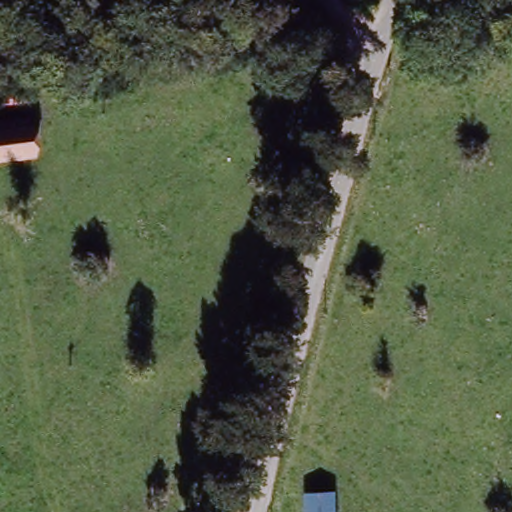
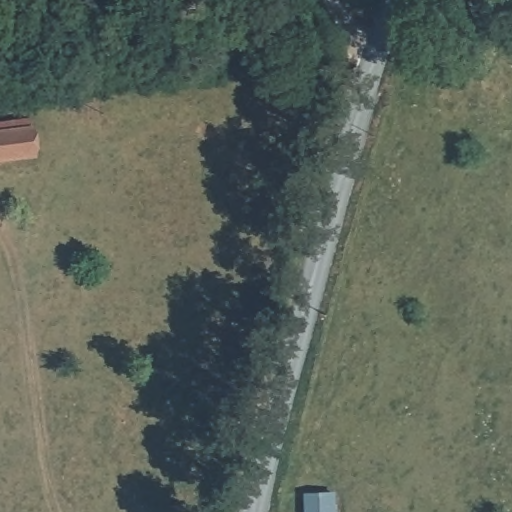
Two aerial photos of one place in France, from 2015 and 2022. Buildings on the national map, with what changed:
unchanged [(0,160),(0,138),(35,134),(38,156),(0,160)]
unchanged [(340,512),(314,512),(311,493),(338,490),(340,512)]

